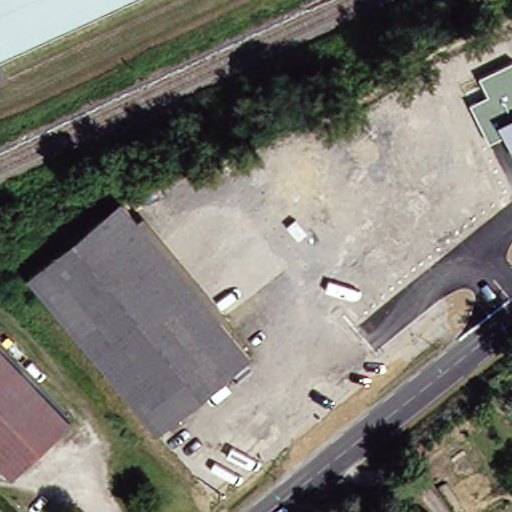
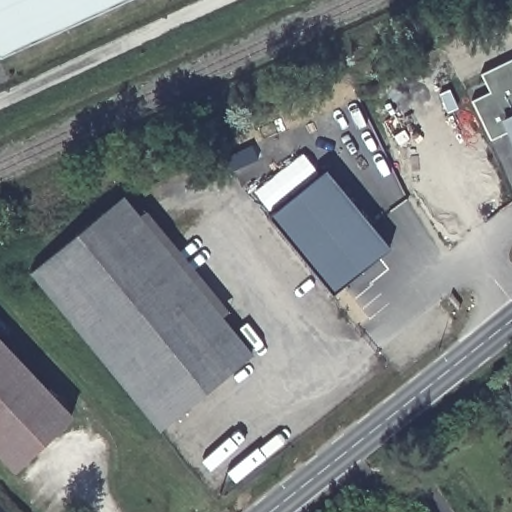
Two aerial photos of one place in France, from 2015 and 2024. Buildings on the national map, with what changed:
unchanged [(0,0),(125,0),(0,56),(0,0)]
unchanged [(505,133),(491,141),(472,101),(490,92),(480,74),(512,59),(512,147),(505,133)]
new [(271,218),(326,172),(389,248),(334,293),(271,218)]
unchanged [(153,433),(23,276),(115,201),(245,358),(153,433)]
unchanged [(0,469),(0,351),(65,419),(6,475),(0,469)]

